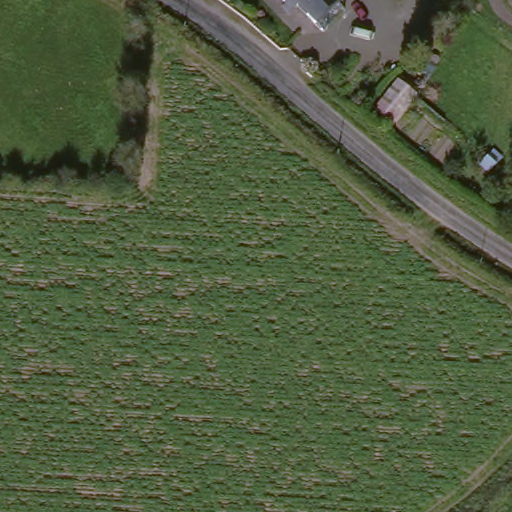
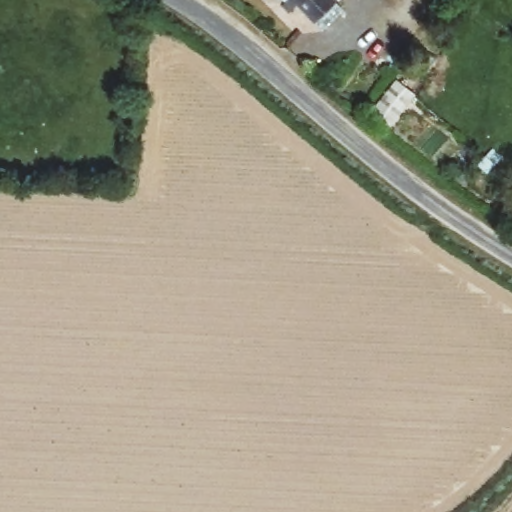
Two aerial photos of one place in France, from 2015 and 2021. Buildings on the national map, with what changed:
unchanged [(321,36),(308,23),(306,24),(290,8),(280,18),(263,0),(323,0),(328,5),(341,18),(321,36)]

